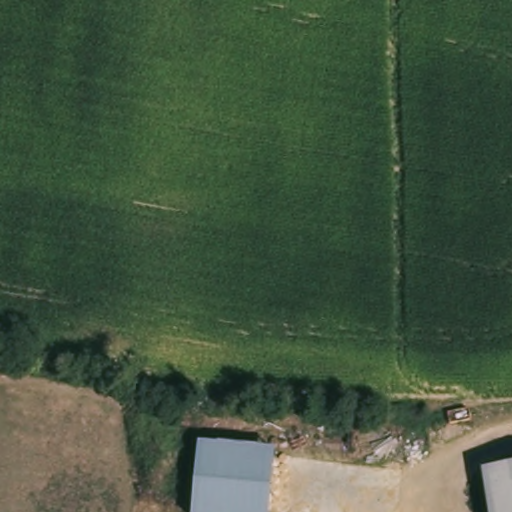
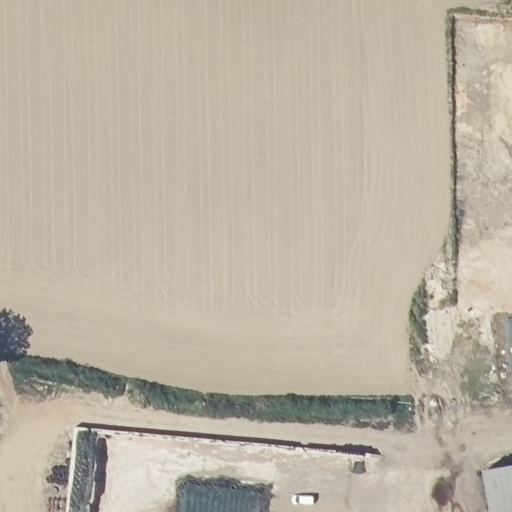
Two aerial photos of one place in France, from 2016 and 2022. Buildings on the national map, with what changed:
demolished [(195,512),(201,445),(280,451),(275,512),(195,512)]
unchanged [(512,468),(512,512),(491,512),(485,472),(512,468)]

